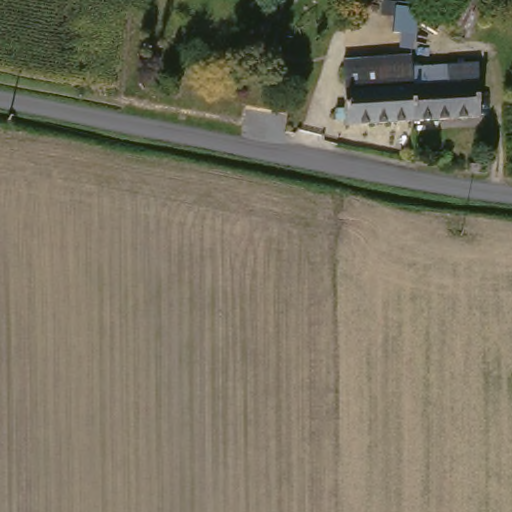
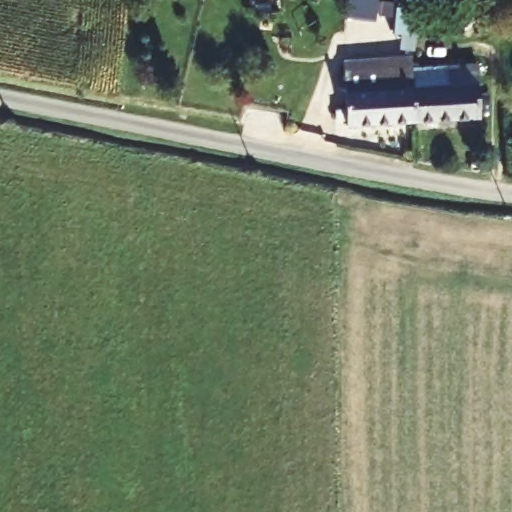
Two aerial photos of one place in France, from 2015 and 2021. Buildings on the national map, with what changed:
unchanged [(407,12),(408,34),(405,35),(390,36),(387,9),(407,12)]
unchanged [(417,116),(353,119),(351,53),(412,50),(413,60),(417,116)]
unchanged [(481,57),(485,112),(417,116),(413,60),(481,57)]

